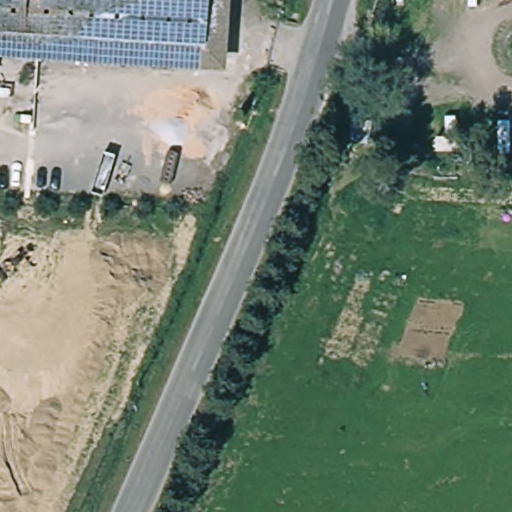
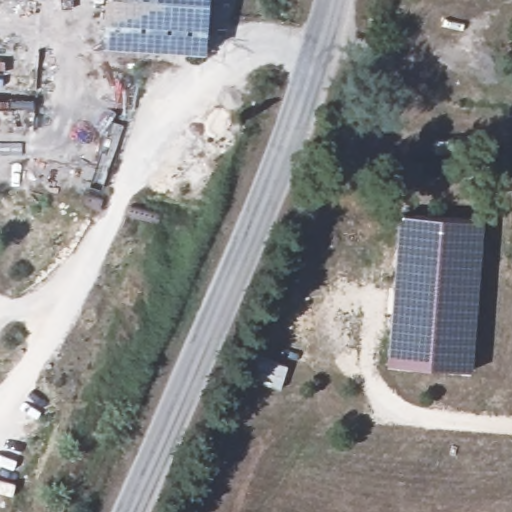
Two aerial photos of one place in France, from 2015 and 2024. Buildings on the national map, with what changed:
demolished [(0,59),(0,0),(230,0),(226,71),(0,59)]
new [(101,46),(104,0),(210,0),(207,51),(101,46)]
new [(472,371),(388,365),(400,215),(484,221),(472,371)]

